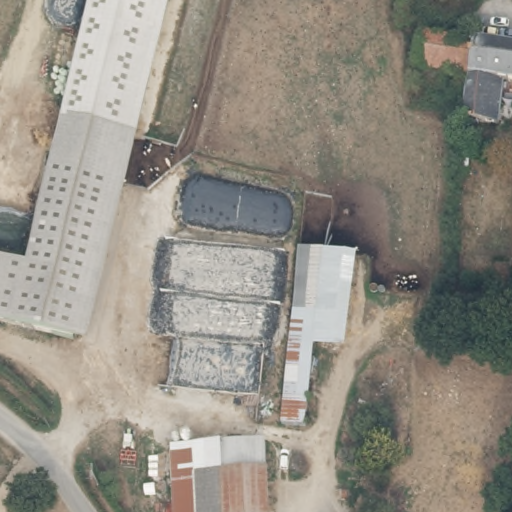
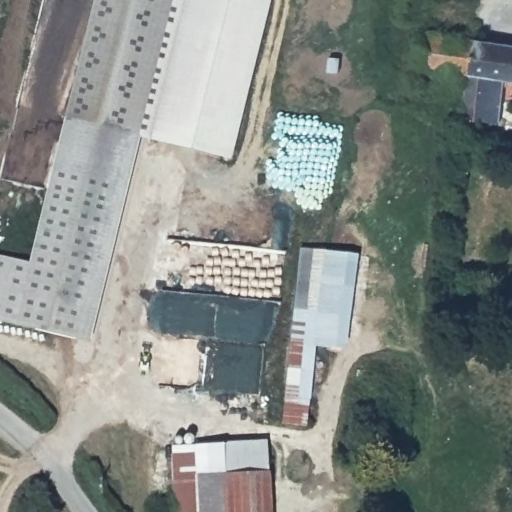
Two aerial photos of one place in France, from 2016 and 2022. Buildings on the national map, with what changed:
unchanged [(0,319),(0,255),(26,261),(91,0),(170,0),(87,338),(0,319)]
new [(170,0),(269,0),(230,160),(136,136),(170,0)]
unchanged [(420,73),(425,36),(476,43),(470,80),(420,73)]
unchanged [(506,85),(502,126),(465,123),(470,80),(476,43),(512,47),(512,86),(506,85)]
new [(324,252),(300,251),(301,248),(355,254),(346,350),(315,346),(324,252)]
unchanged [(282,426),(300,251),(324,252),(307,428),(282,426)]
unchanged [(265,447),(264,512),(170,512),(172,444),(265,447)]

